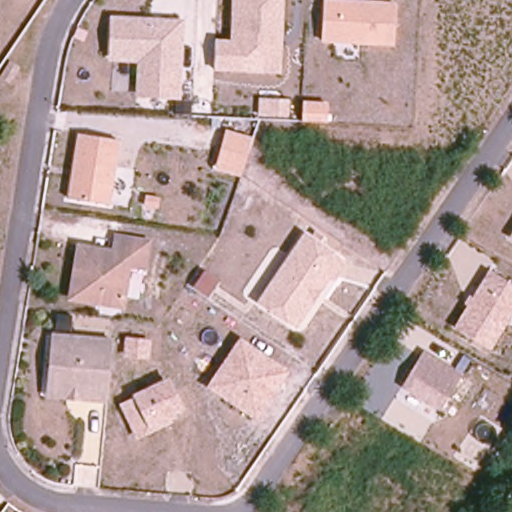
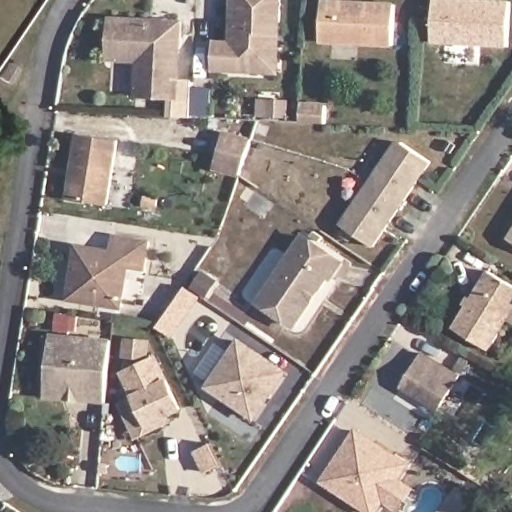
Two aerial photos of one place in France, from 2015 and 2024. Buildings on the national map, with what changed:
unchanged [(284,0),(280,74),(214,71),(214,39),(230,39),(232,0),(284,0)]
unchanged [(364,0),(396,2),(394,46),(321,43),(323,0),(364,0)]
new [(435,0),(482,0),(510,1),(508,49),(432,46),(435,0)]
unchanged [(135,96),(137,62),(108,60),(110,16),(184,19),(181,99),(135,96)]
unchanged [(11,71),(20,78),(10,93),(1,86),(11,71)]
unchanged [(241,177),(214,169),(225,129),(252,136),(241,177)]
unchanged [(110,204),(67,199),(77,133),(120,140),(110,204)]
new [(398,139),(432,163),(403,206),(368,183),(398,139)]
new [(340,224),(368,183),(403,206),(375,248),(340,224)]
unchanged [(512,233),(512,238),(509,237),(512,233)]
unchanged [(147,242),(142,268),(126,265),(119,306),(69,298),(71,277),(70,274),(71,269),(74,267),(77,247),(93,249),(111,253),(114,237),(147,242)]
unchanged [(295,328),(261,304),(305,239),(343,264),(332,280),(329,278),(319,293),(313,302),(295,328)]
unchanged [(469,295),(472,297),(489,269),(512,284),(512,315),(491,350),(454,326),(466,305),(463,303),(469,295)]
new [(203,297),(174,339),(157,328),(186,285),(203,297)]
unchanged [(50,355),(51,336),(112,342),(106,403),(89,402),(45,397),(50,355)]
unchanged [(255,420),(206,387),(239,337),(289,371),(255,420)]
unchanged [(439,411),(402,387),(424,350),(461,373),(439,411)]
unchanged [(172,423),(136,439),(119,404),(133,398),(131,394),(168,378),(184,411),(170,418),(172,423)]
new [(412,464),(402,479),(417,488),(401,512),(385,503),(380,512),(365,512),(318,482),(354,429),(412,464)]
new [(465,512),(439,512),(458,487),(474,499),(465,512)]

